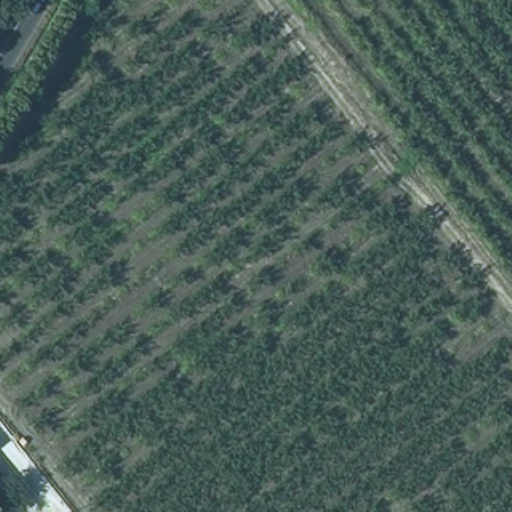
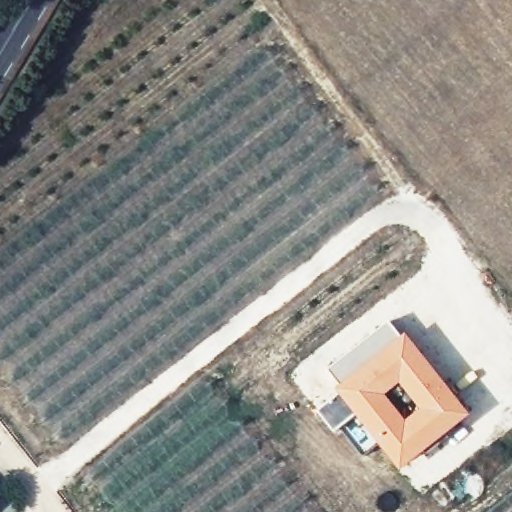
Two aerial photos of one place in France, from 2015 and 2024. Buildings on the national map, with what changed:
new [(472,415),(401,471),(379,444),(363,456),(341,429),(336,433),(317,410),(339,393),(336,389),(341,385),(329,369),(391,321),(403,337),(407,333),(472,415)]

